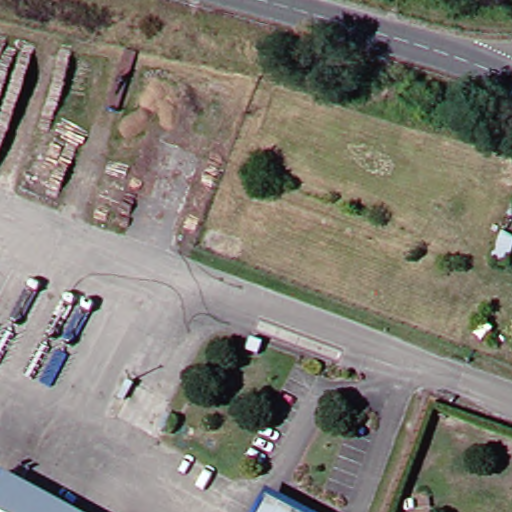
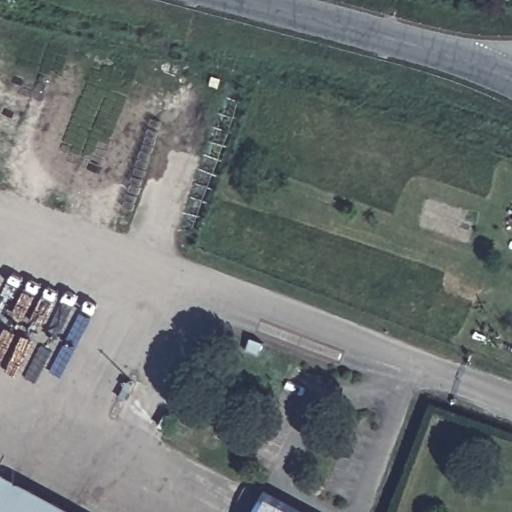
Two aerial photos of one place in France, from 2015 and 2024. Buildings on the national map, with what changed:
unchanged [(512,200),(512,224),(504,221),(512,199),(512,200)]
unchanged [(4,474),(28,489),(14,512),(0,512),(0,480),(4,474)]
unchanged [(28,489),(65,512),(14,512),(28,489)]
unchanged [(262,496),(285,511),(284,512),(252,512),(262,496)]

